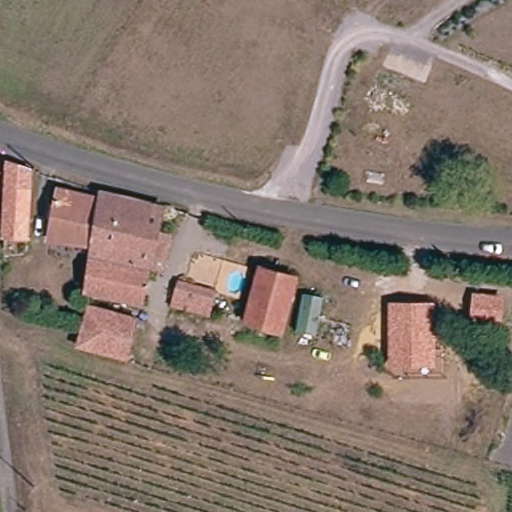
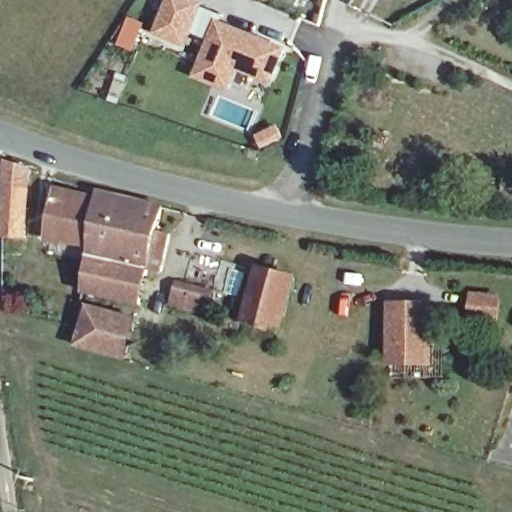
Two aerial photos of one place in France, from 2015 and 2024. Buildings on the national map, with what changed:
new [(188,47),(155,36),(169,0),(196,0),(205,4),(188,47)]
new [(289,47),(274,85),(239,72),(232,92),(194,79),(218,19),(289,47)]
unchanged [(2,242),(13,157),(31,162),(21,243),(2,242)]
unchanged [(167,278),(150,275),(143,304),(76,287),(83,253),(93,206),(96,195),(164,212),(158,237),(175,239),(167,278)]
unchanged [(46,246),(57,198),(93,206),(83,253),(46,246)]
unchanged [(292,283),(280,327),(248,320),(259,274),(292,283)]
unchanged [(172,296),(175,283),(191,286),(189,300),(202,302),(199,317),(168,310),(172,296)]
unchanged [(473,292),(505,295),(503,328),(470,326),(473,292)]
unchanged [(388,301),(436,301),(437,369),(389,371),(388,301)]
unchanged [(89,311),(137,322),(131,352),(128,361),(128,362),(80,349),(83,337),(89,311)]

